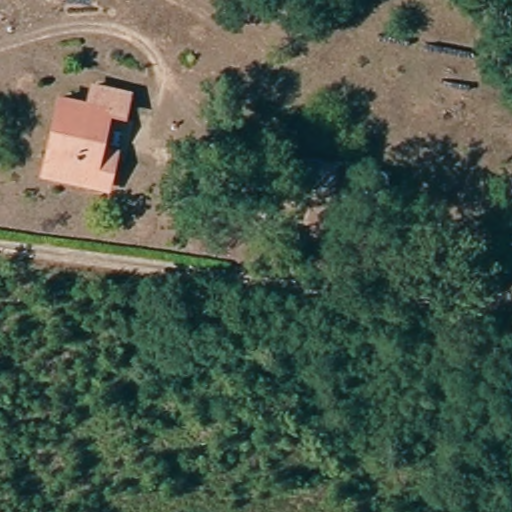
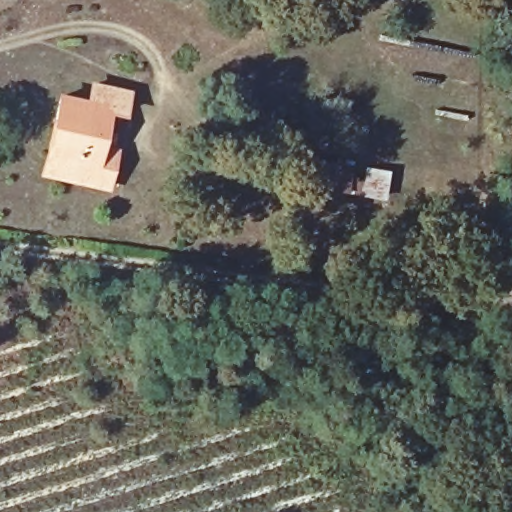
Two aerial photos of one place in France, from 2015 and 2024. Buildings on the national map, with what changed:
unchanged [(125,112),(109,110),(104,150),(119,153),(113,188),(52,181),(62,99),(89,101),(93,79),(129,82),(125,112)]
unchanged [(388,164),(386,191),(361,188),(364,160),(388,164)]
unchanged [(346,210),(283,199),(288,176),(349,184),(346,210)]

